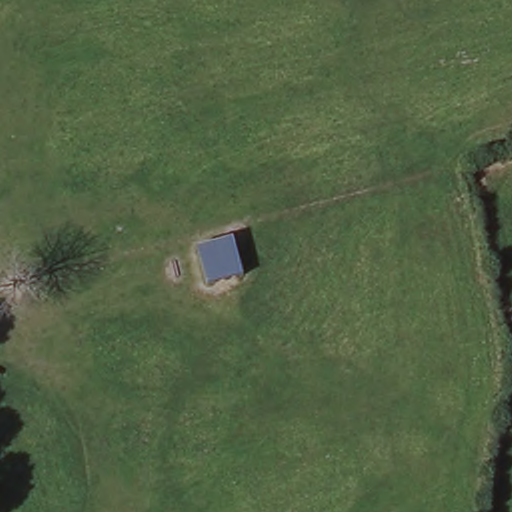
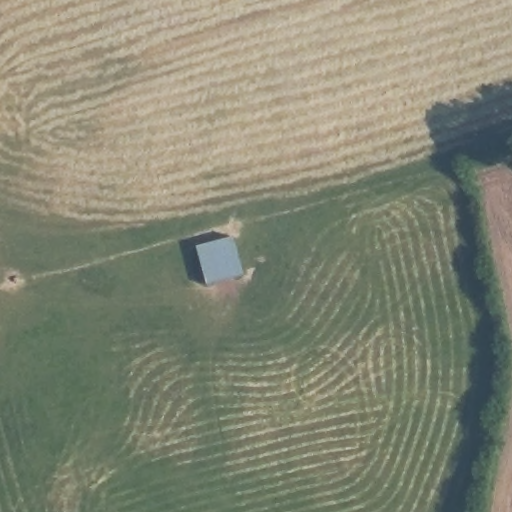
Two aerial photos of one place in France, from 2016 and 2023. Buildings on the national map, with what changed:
unchanged [(209,283),(198,247),(236,235),(243,272),(209,283)]

